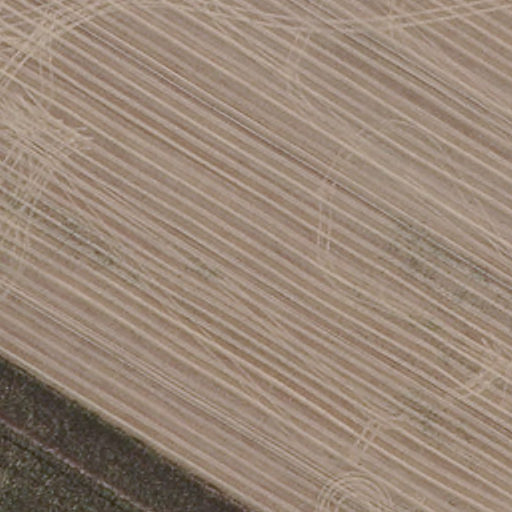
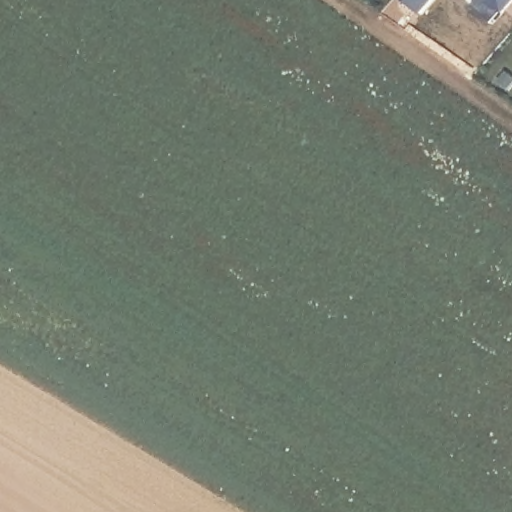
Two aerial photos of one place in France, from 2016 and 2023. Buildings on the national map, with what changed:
new [(422,13),(406,0),(434,0),(422,13)]
new [(493,22),(472,5),(477,0),(512,0),(512,2),(493,22)]

